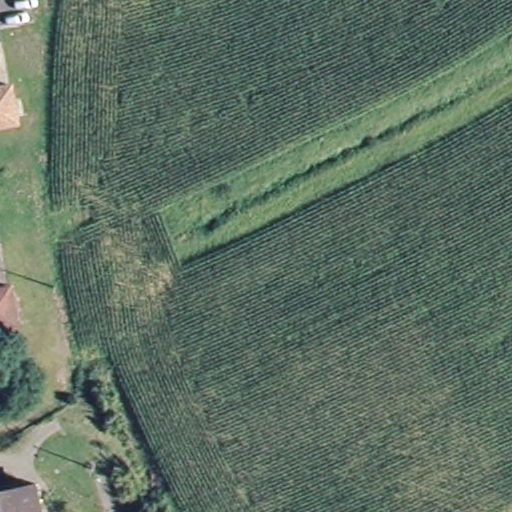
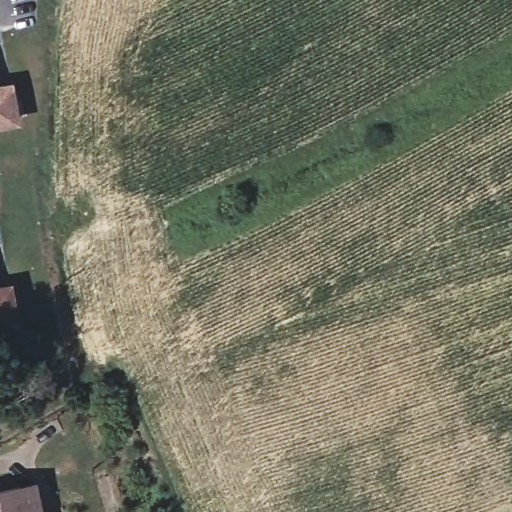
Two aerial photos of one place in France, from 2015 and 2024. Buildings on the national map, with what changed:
unchanged [(25,123),(0,128),(0,89),(17,86),(25,123)]
unchanged [(22,311),(0,315),(0,276),(12,272),(22,311)]
unchanged [(48,512),(0,512),(0,493),(42,483),(48,512)]

